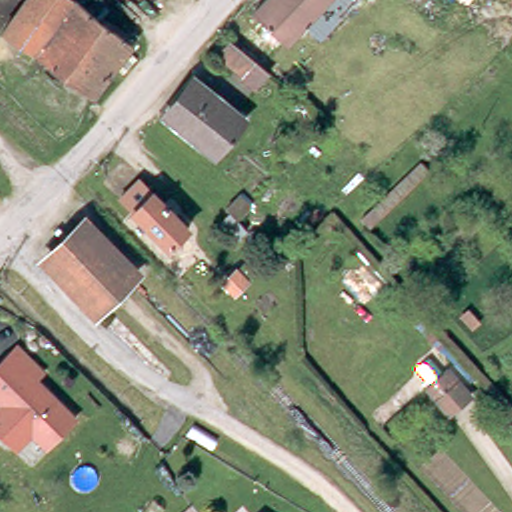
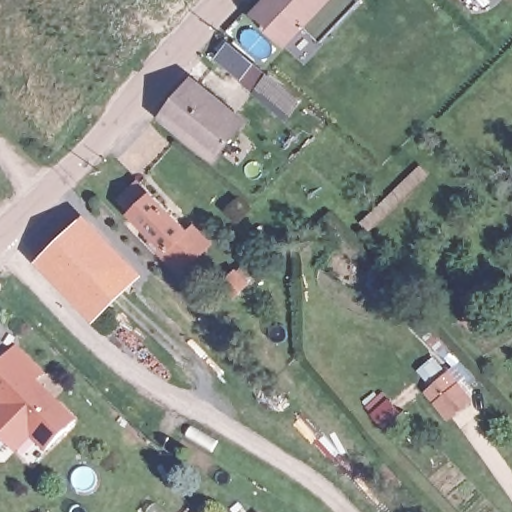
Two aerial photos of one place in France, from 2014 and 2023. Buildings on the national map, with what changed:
demolished [(0,27),(0,18),(15,0),(61,0),(80,15),(101,31),(129,54),(95,100),(0,27)]
unchanged [(314,41),(299,29),(282,45),(243,8),(251,0),(356,0),(314,41)]
unchanged [(90,3),(110,20),(101,31),(80,15),(90,3)]
unchanged [(236,76),(212,54),(226,40),(250,61),(262,73),(249,88),(236,76)]
unchanged [(195,78),(242,121),(212,155),(162,114),(195,78)]
unchanged [(412,160),(427,179),(374,227),(358,210),(412,160)]
unchanged [(119,197),(137,179),(185,228),(167,246),(119,197)]
unchanged [(50,246),(74,223),(128,277),(105,300),(50,246)]
unchanged [(5,446),(0,441),(0,406),(2,404),(0,402),(0,364),(12,352),(37,376),(30,384),(70,422),(42,450),(27,436),(25,439),(12,452),(5,446)]
unchanged [(444,363),(469,392),(447,410),(422,382),(444,363)]

